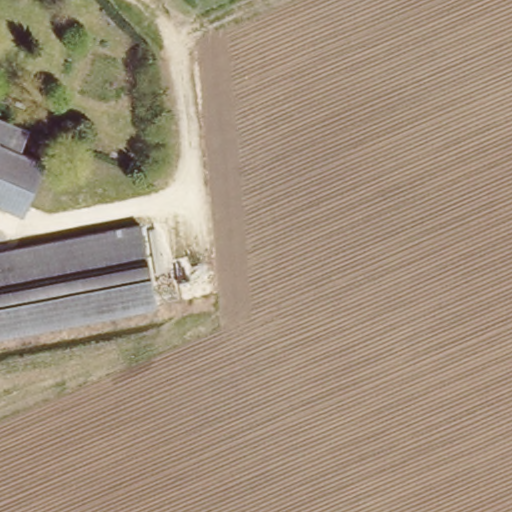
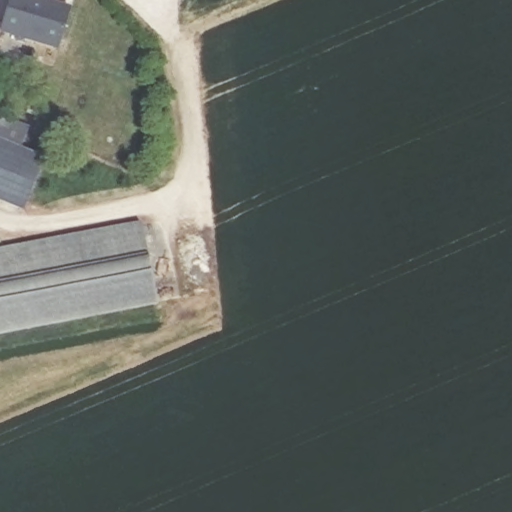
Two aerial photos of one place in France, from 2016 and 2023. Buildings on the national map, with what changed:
new [(71,9),(57,50),(0,33),(0,29),(10,0),(44,0),(71,9)]
unchanged [(22,146),(0,138),(0,111),(30,122),(22,146)]
unchanged [(45,155),(29,207),(0,197),(0,138),(22,146),(45,155)]
unchanged [(155,298),(0,332),(0,250),(139,220),(155,298)]

